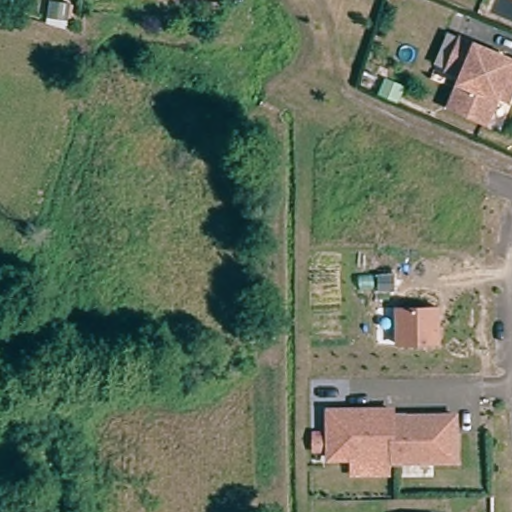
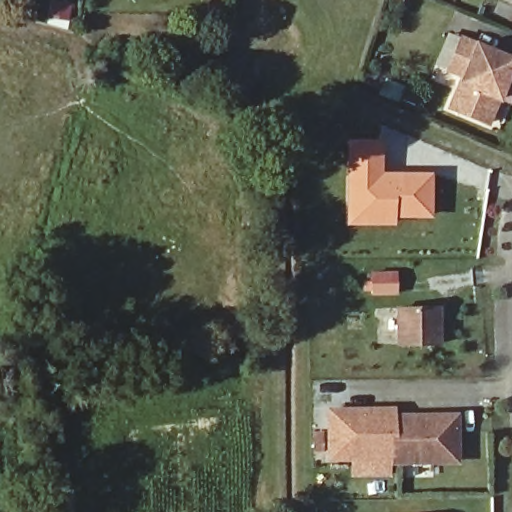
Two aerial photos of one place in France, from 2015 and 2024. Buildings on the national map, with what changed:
unchanged [(79,28),(59,26),(61,9),(81,12),(79,28)]
unchanged [(509,93),(497,122),(459,107),(472,75),(457,69),(446,64),(458,32),(470,37),(512,53),(512,94),(509,93)]
unchanged [(409,101),(393,94),(399,80),(415,86),(409,101)]
new [(345,139),(383,139),(383,171),(433,172),(431,219),(396,218),(396,227),(345,226),(345,139)]
new [(397,270),(398,295),(370,296),(368,271),(397,270)]
unchanged [(398,346),(397,307),(442,304),(444,346),(398,346)]
unchanged [(457,466),(395,466),(395,462),(331,462),(331,414),(366,414),(366,420),(377,420),(377,414),(395,413),(395,420),(416,420),(416,427),(438,427),(438,420),(457,420),(457,466)]

